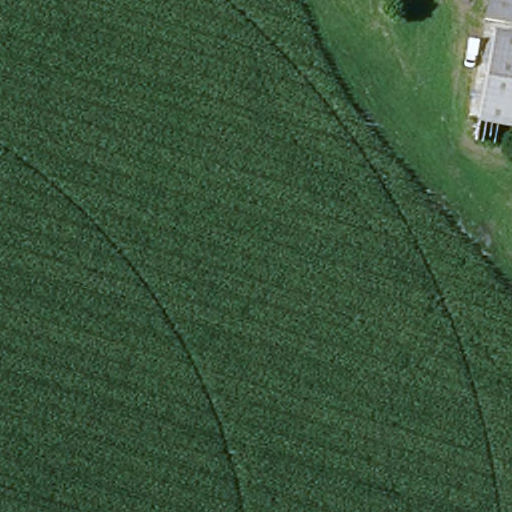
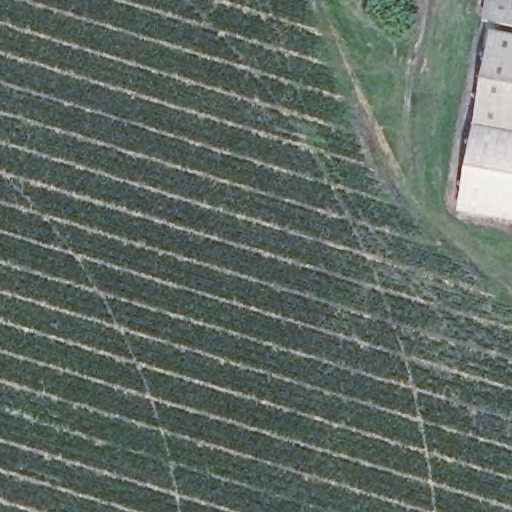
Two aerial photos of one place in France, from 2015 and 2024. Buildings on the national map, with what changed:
unchanged [(495,27),(484,21),(488,0),(512,0),(512,31),(495,27)]
unchanged [(512,31),(512,127),(478,121),(495,27),(512,31)]
new [(462,208),(478,121),(512,127),(512,217),(462,208)]

